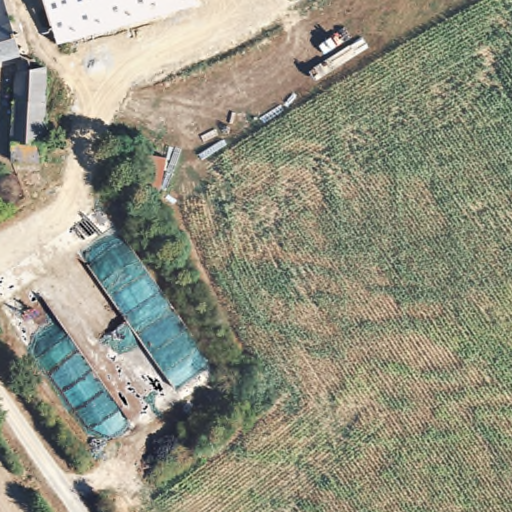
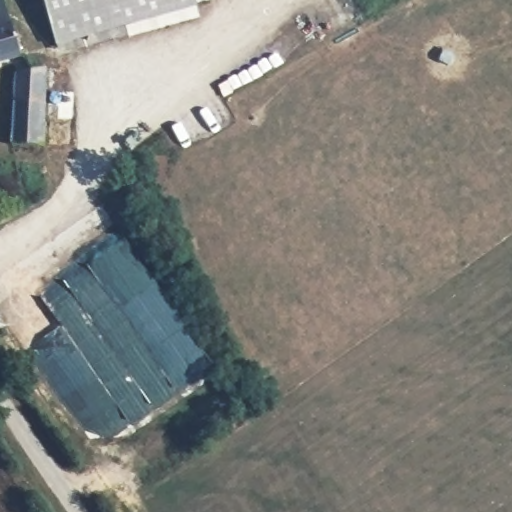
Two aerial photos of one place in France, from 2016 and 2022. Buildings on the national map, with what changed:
unchanged [(75,41),(77,50),(60,56),(56,45),(43,0),(194,0),(197,9),(75,41)]
unchanged [(15,54),(14,59),(0,63),(0,13),(15,54)]
unchanged [(41,71),(39,160),(12,160),(13,128),(17,75),(41,71)]

